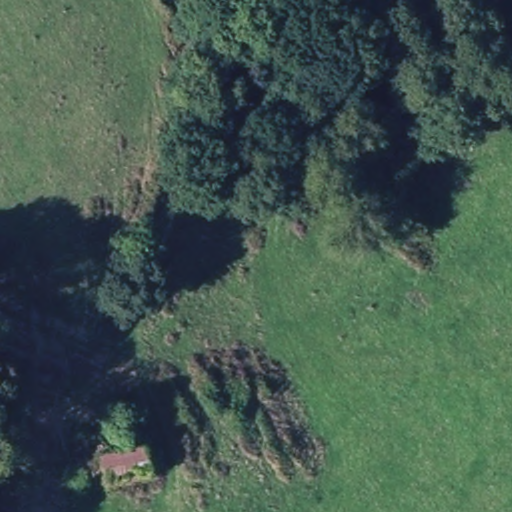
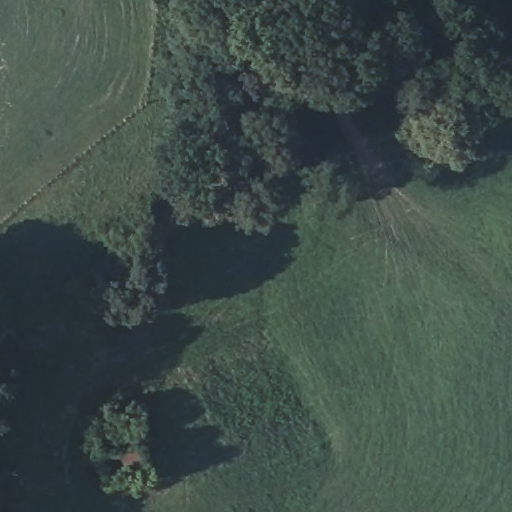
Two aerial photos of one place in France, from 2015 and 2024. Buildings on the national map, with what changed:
unchanged [(135,412),(153,474),(109,487),(101,463),(116,457),(107,423),(135,412)]

